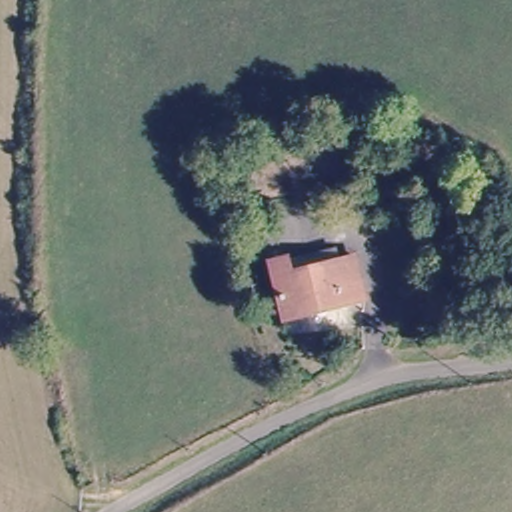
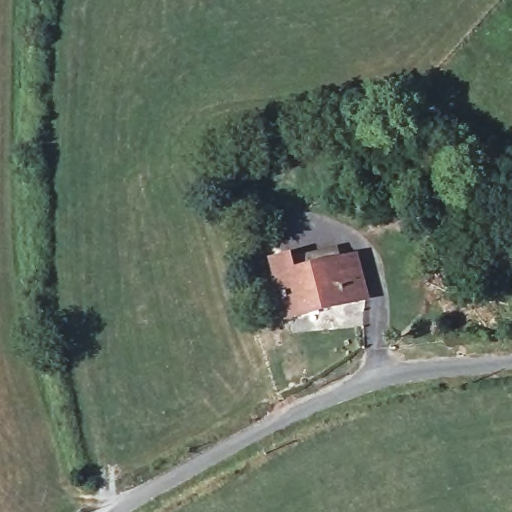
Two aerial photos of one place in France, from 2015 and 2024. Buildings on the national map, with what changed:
unchanged [(287,260),(291,275),(349,264),(357,302),(279,323),(265,266),(287,260)]

